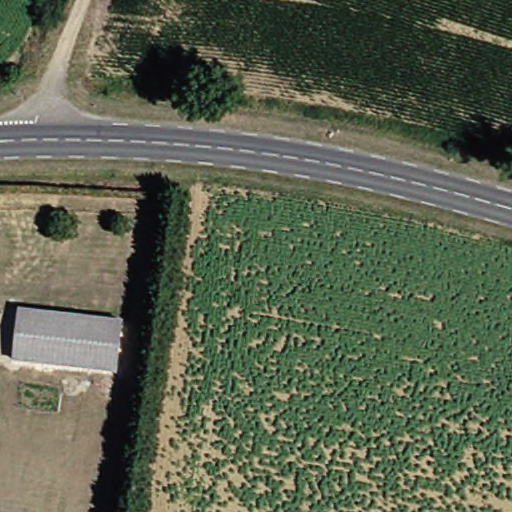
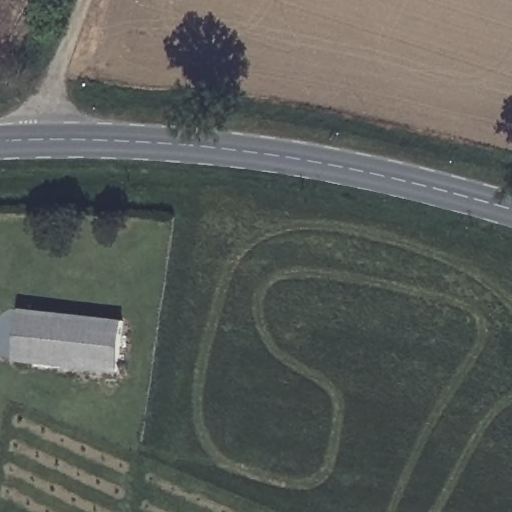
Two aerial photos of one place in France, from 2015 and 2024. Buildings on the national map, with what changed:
unchanged [(130,320),(125,371),(22,361),(28,308),(130,320)]

